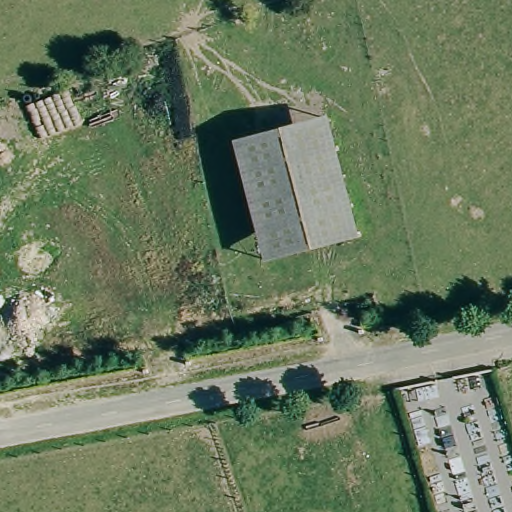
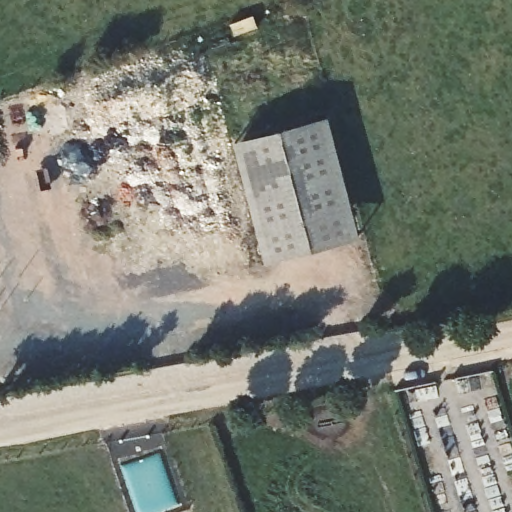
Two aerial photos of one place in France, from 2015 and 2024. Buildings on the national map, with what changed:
unchanged [(230,146),(329,122),(360,242),(264,268),(230,146)]

